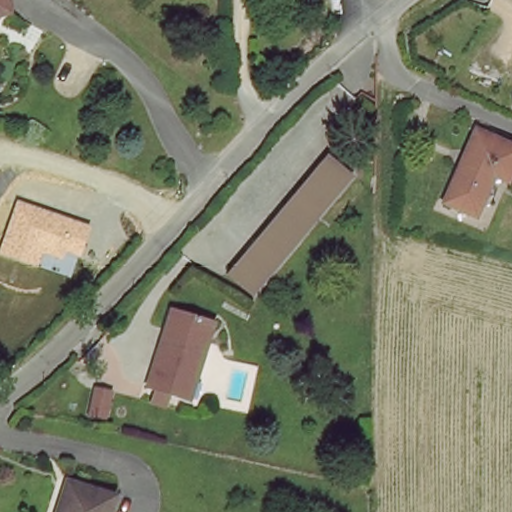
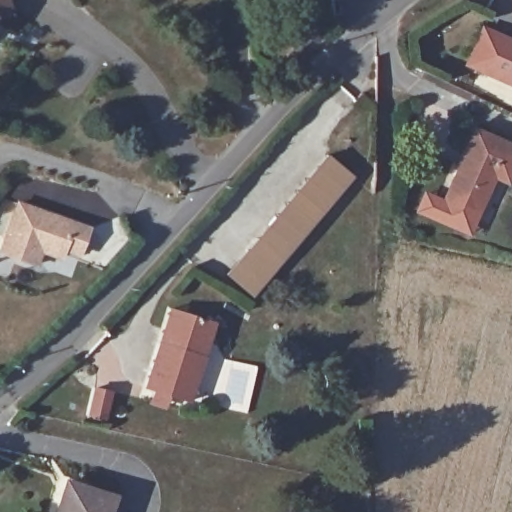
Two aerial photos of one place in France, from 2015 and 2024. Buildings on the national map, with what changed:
unchanged [(9,0),(13,16),(0,20),(0,0),(9,0)]
new [(482,24),(512,38),(512,87),(464,65),(482,24)]
unchanged [(464,210),(436,199),(466,125),(512,145),(499,177),(485,171),(468,212),(464,210)]
unchanged [(353,178),(255,295),(229,273),(327,156),(353,178)]
unchanged [(16,201),(90,226),(81,256),(69,252),(65,259),(43,252),(39,267),(0,254),(0,247),(16,201)]
unchanged [(182,398),(141,382),(157,342),(171,305),(183,310),(212,321),(182,398)]
unchanged [(125,395),(120,424),(103,419),(108,392),(125,395)]
unchanged [(104,512),(58,512),(68,481),(110,493),(104,512)]

